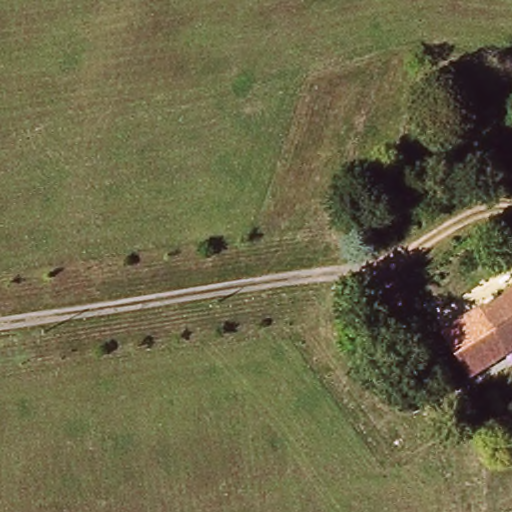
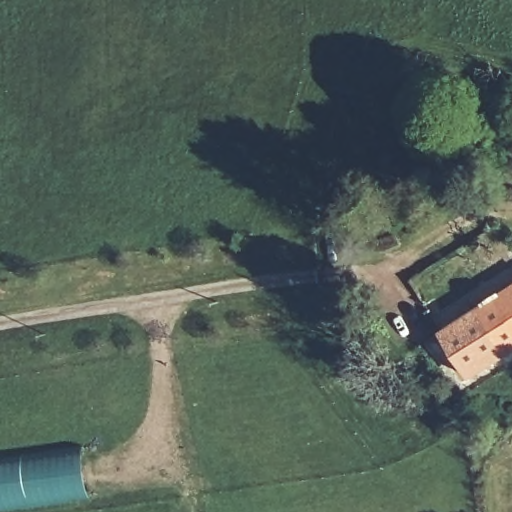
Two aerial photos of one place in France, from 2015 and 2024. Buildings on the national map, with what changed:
unchanged [(474,380),(448,337),(512,293),(512,355),(474,380)]
new [(89,498),(0,511),(0,461),(82,449),(89,498)]

